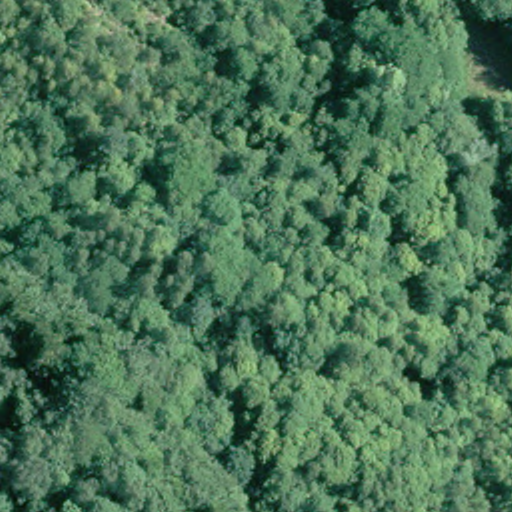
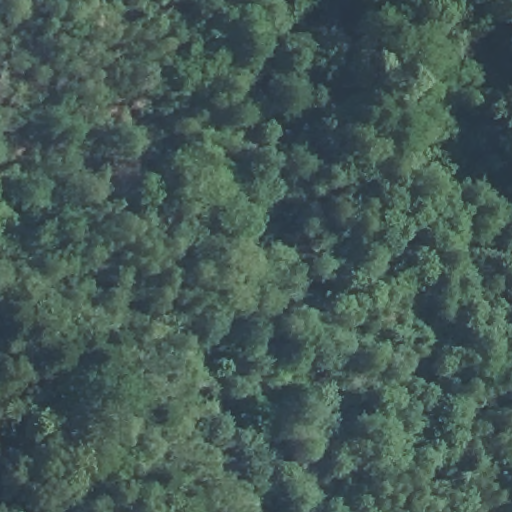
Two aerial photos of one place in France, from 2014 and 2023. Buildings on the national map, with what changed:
unchanged [(213,0),(193,9),(189,0),(213,0)]
unchanged [(54,454),(30,474),(0,440),(0,425),(17,411),(54,454)]

